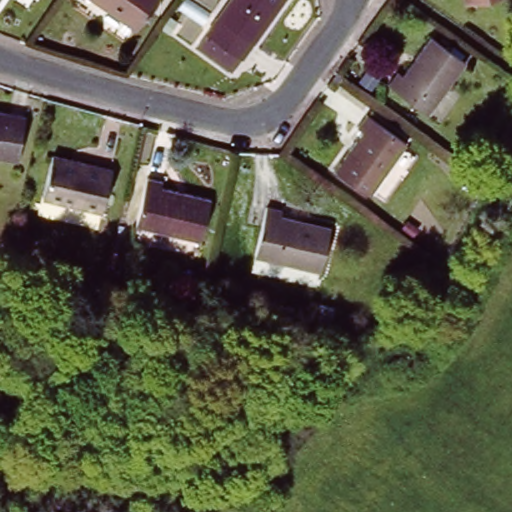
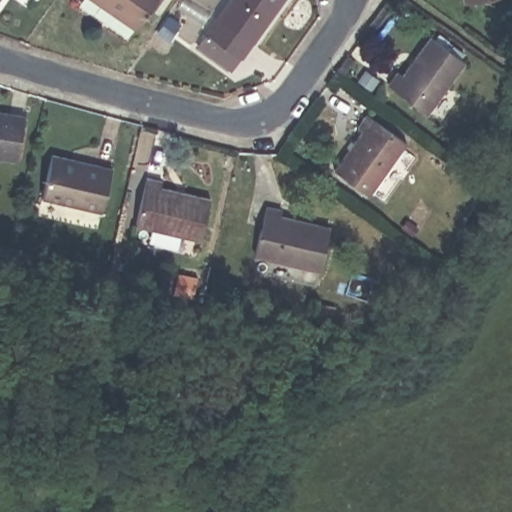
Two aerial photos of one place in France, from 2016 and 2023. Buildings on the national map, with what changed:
unchanged [(94,0),(158,0),(137,29),(94,0)]
unchanged [(210,35),(210,33),(233,0),(287,0),(246,56),(242,57),(235,67),(204,45),(210,35)]
unchanged [(485,0),(500,0),(490,6),(485,0)]
unchanged [(429,35),(465,59),(428,111),(387,85),(397,70),(404,72),(429,35)]
unchanged [(20,158),(0,154),(0,114),(29,119),(20,158)]
unchanged [(410,141),(372,196),(338,172),(365,130),(360,127),(368,115),(410,141)]
unchanged [(111,172),(101,212),(43,199),(53,159),(111,172)]
unchanged [(209,203),(197,245),(137,228),(148,183),(160,186),(158,191),(209,203)]
unchanged [(330,230),(320,269),(255,254),(267,208),(280,211),(279,215),(330,230)]

